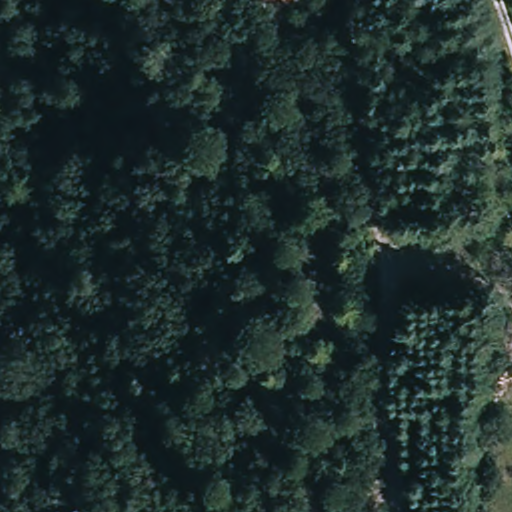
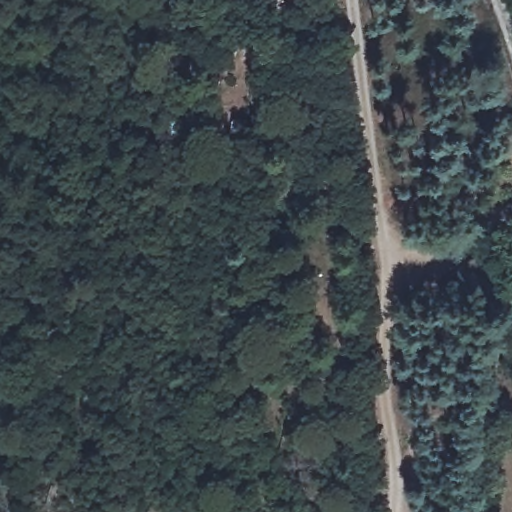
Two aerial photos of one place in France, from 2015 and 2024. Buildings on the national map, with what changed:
unchanged [(237,0),(249,0),(238,1),(237,0)]
unchanged [(51,63),(34,66),(31,40),(48,39),(51,63)]

